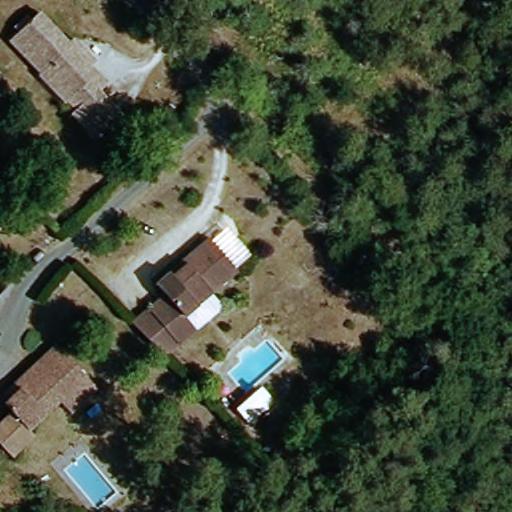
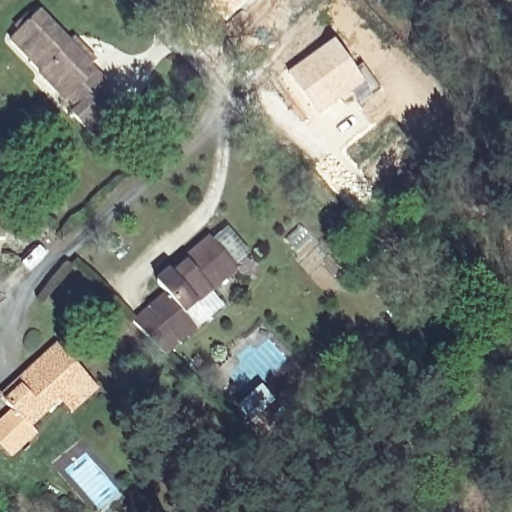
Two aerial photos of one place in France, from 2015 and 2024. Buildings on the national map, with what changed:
new [(217,24),(196,0),(248,0),(217,24)]
unchanged [(98,146),(89,136),(77,123),(85,116),(73,104),(68,109),(44,85),(48,81),(16,48),(22,42),(19,38),(33,25),(37,28),(45,19),(78,52),(75,55),(79,60),(87,52),(101,68),(95,73),(113,90),(107,96),(118,107),(130,118),(98,146)]
new [(335,39),(365,86),(317,117),(287,73),(335,39)]
unchanged [(185,319),(195,333),(164,359),(132,326),(166,297),(157,286),(168,276),(173,281),(196,262),(192,257),(208,243),(235,276),(185,319)]
unchanged [(40,439),(15,462),(0,445),(0,428),(15,413),(8,407),(0,399),(23,377),(57,347),(87,380),(100,394),(75,416),(63,404),(32,432),(40,439)]

